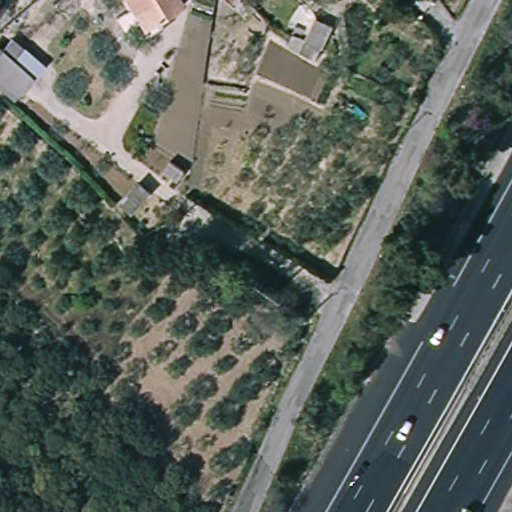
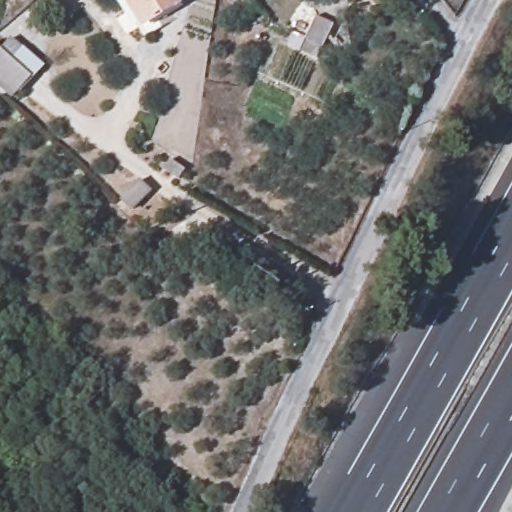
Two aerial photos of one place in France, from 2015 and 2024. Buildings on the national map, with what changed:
unchanged [(143,29),(128,0),(182,0),(185,6),(143,29)]
unchanged [(331,27),(316,60),(298,50),(314,17),(331,27)]
unchanged [(6,86),(0,81),(0,62),(18,42),(29,51),(20,61),(40,78),(27,94),(25,92),(20,98),(6,86)]
unchanged [(170,160),(183,171),(177,182),(162,171),(170,160)]
unchanged [(135,177),(147,187),(130,210),(118,200),(135,177)]

